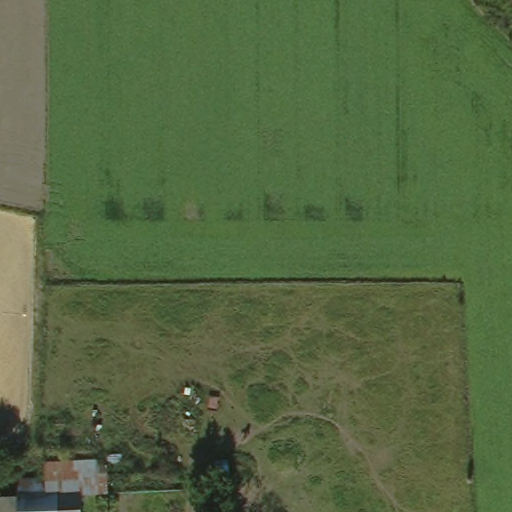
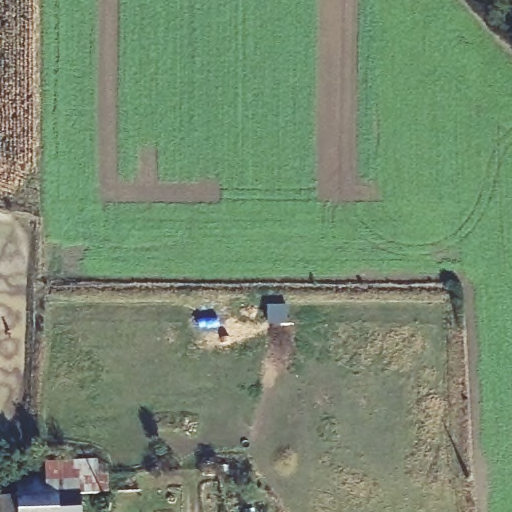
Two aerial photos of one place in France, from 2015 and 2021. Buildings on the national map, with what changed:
unchanged [(47,474),(46,458),(97,456),(100,491),(84,492),(41,494),(38,494),(36,474),(47,474)]
unchanged [(9,477),(36,474),(38,494),(41,494),(84,492),(85,512),(0,512),(0,502),(10,501),(9,477)]

